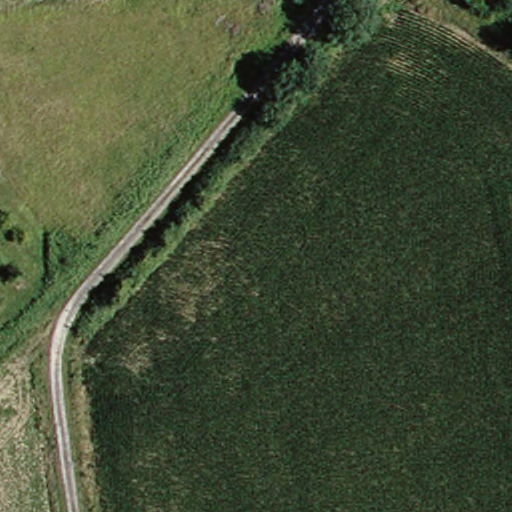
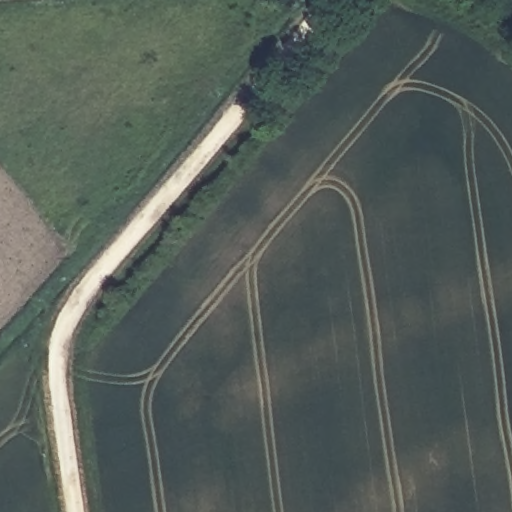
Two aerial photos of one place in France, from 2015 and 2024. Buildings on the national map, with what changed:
[]

